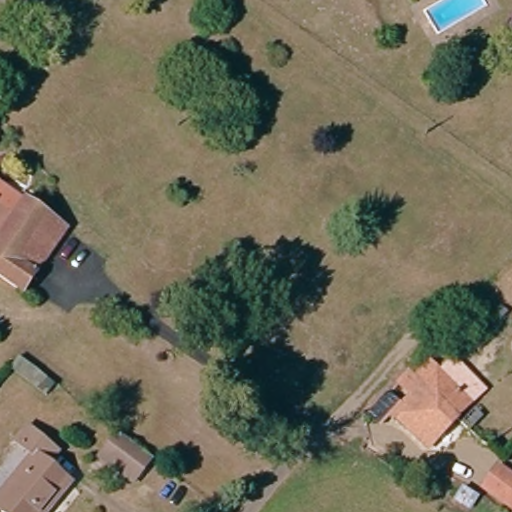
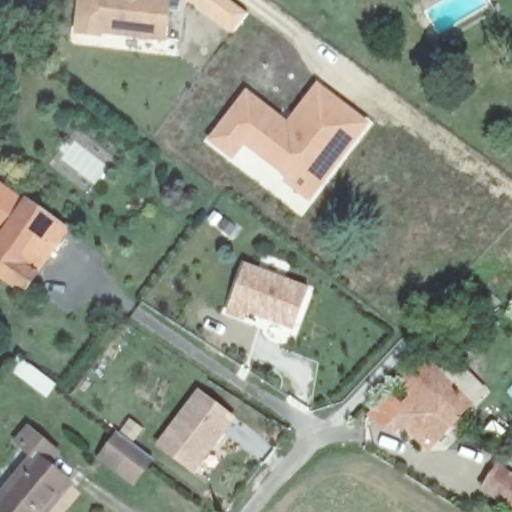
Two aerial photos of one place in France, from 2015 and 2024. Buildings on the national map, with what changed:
new [(103,34),(102,37),(75,32),(78,0),(171,0),(167,42),(103,34)]
new [(231,32),(187,0),(224,0),(244,15),(231,32)]
new [(287,121),(316,82),(369,122),(309,201),(283,182),(286,178),(245,147),(233,160),(207,139),(247,89),(287,121)]
unchanged [(17,211),(20,209),(58,239),(30,276),(14,299),(0,289),(0,198),(17,211)]
new [(309,287),(295,330),(248,314),(244,322),(225,316),(246,262),(309,287)]
unchanged [(75,385),(66,397),(46,382),(44,384),(27,371),(40,357),(75,385)]
unchanged [(465,375),(481,389),(461,413),(414,371),(425,358),(456,385),(465,375)]
unchanged [(433,444),(399,413),(416,393),(404,382),(414,371),(461,413),(433,444)]
new [(236,418),(194,473),(155,445),(198,389),(236,418)]
unchanged [(399,400),(380,419),(371,410),(389,391),(399,400)]
unchanged [(44,512),(8,512),(0,504),(0,485),(35,450),(21,435),(33,422),(63,453),(50,466),(70,486),(44,512)]
new [(153,458),(134,487),(97,459),(116,432),(153,458)]
demolished [(155,490),(121,464),(141,438),(175,464),(155,490)]
unchanged [(482,484),(495,467),(512,481),(512,507),(504,501),(482,484)]

